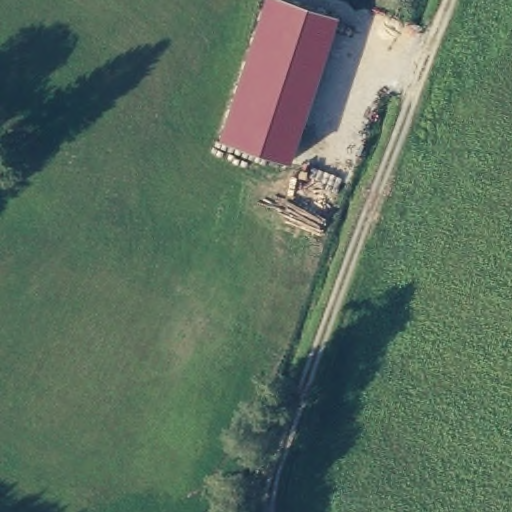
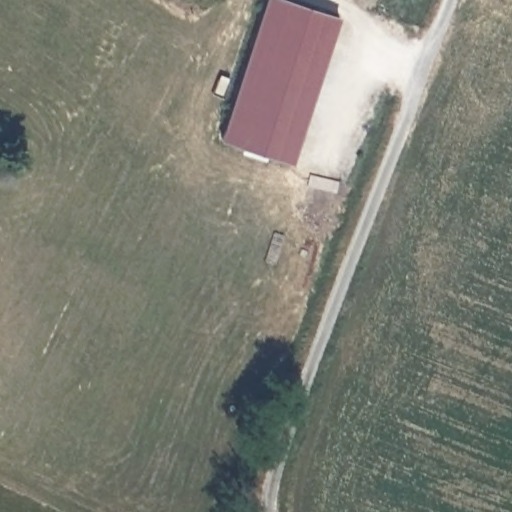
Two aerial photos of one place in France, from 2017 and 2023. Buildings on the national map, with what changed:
unchanged [(340,16),(292,162),(220,139),(267,0),(290,0),(340,16)]

